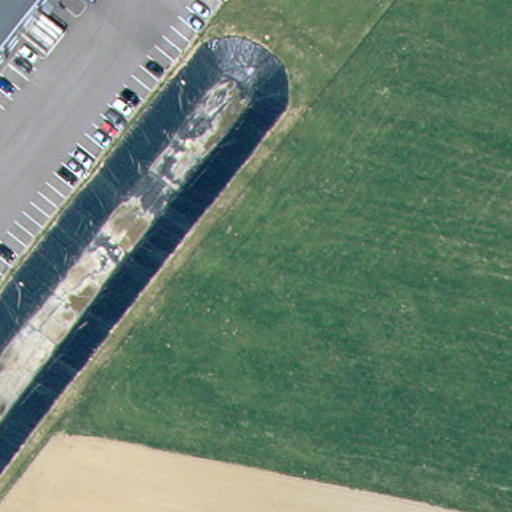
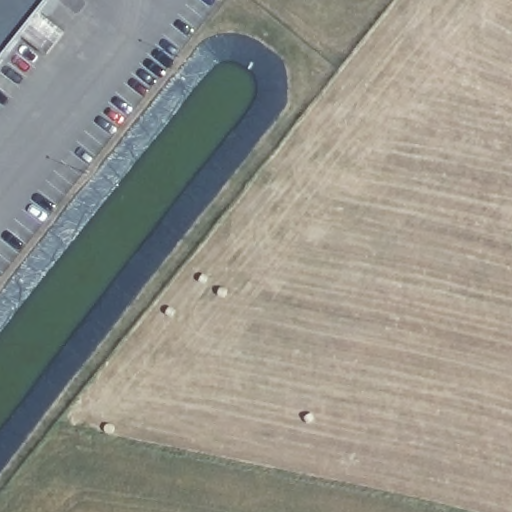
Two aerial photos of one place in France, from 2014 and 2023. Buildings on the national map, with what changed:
unchanged [(0,60),(0,0),(48,0),(0,60)]

